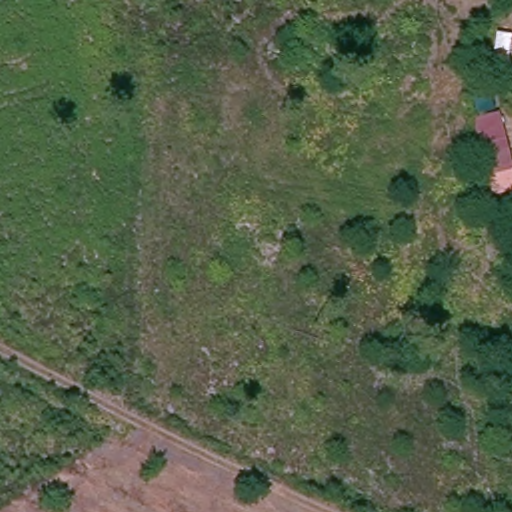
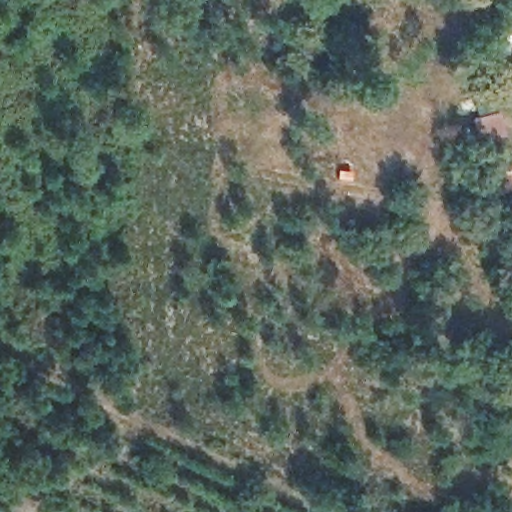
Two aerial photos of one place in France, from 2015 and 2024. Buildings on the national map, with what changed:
unchanged [(475,116),(469,97),(489,91),(512,167),(512,176),(485,182),(470,117),(475,116)]

